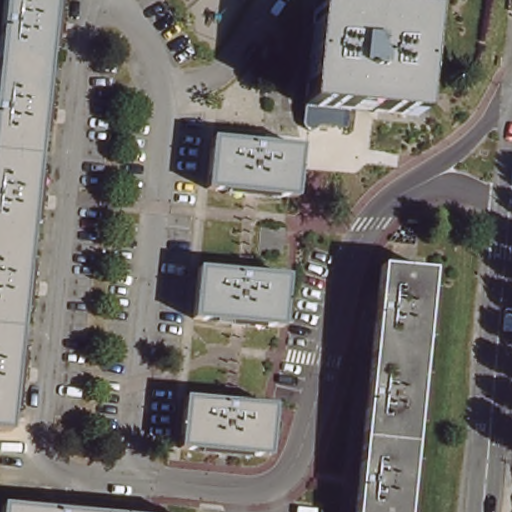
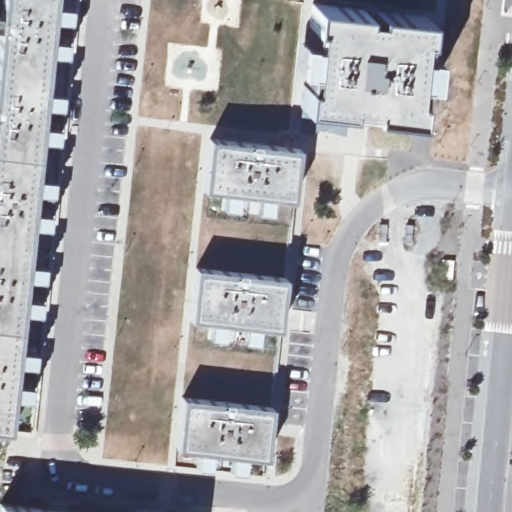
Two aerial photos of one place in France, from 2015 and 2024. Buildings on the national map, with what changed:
unchanged [(0,427),(0,24),(2,0),(53,0),(9,427),(0,427)]
unchanged [(302,110),(314,10),(427,21),(415,122),(302,110)]
unchanged [(287,202),(200,193),(206,142),(292,152),(287,202)]
demolished [(255,250),(257,226),(284,229),(282,251),(255,250)]
demolished [(405,512),(355,512),(380,265),(429,272),(405,512)]
unchanged [(279,328),(191,319),(197,268),(284,276),(279,328)]
unchanged [(178,450),(184,402),(270,412),(265,460),(178,450)]
unchanged [(33,512),(0,512),(0,509),(33,512)]

